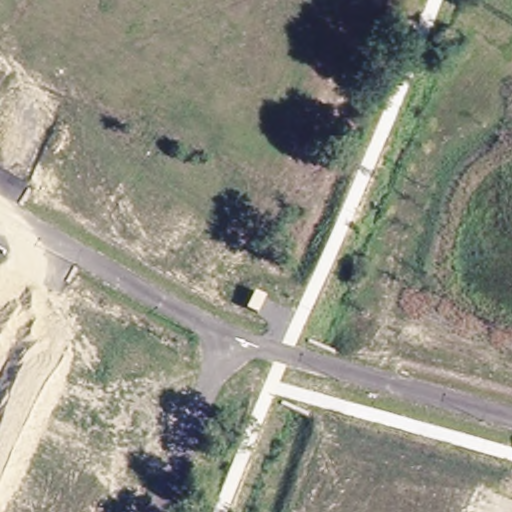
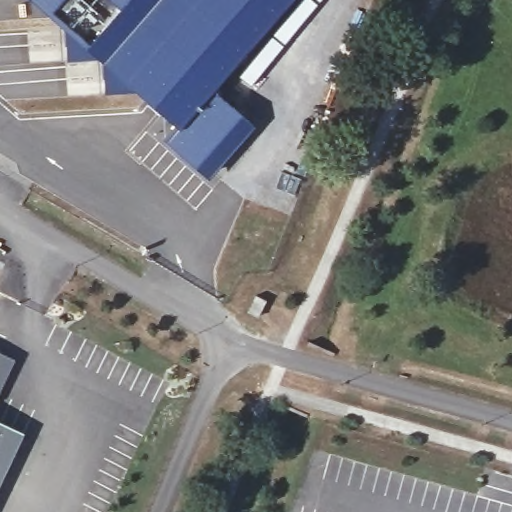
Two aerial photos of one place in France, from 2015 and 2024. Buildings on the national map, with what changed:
new [(252,122),(211,169),(170,134),(178,123),(140,90),(107,93),(105,59),(102,57),(70,60),(67,26),(36,0),(290,0),(212,88),(252,122)]
new [(256,299),(266,304),(257,321),(247,317),(256,299)]
new [(0,392),(0,352),(16,359),(0,392)]
unchanged [(22,434),(0,481),(0,423),(22,434)]

